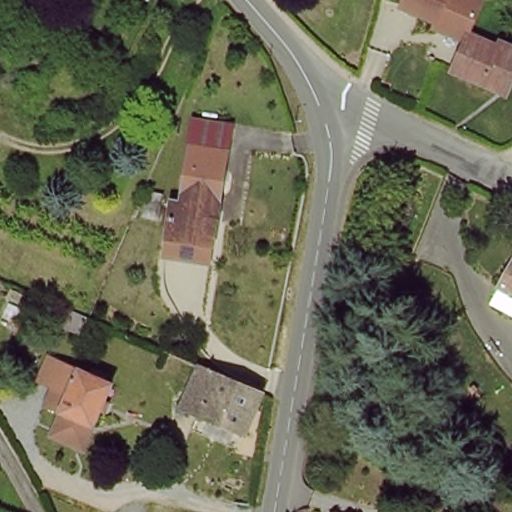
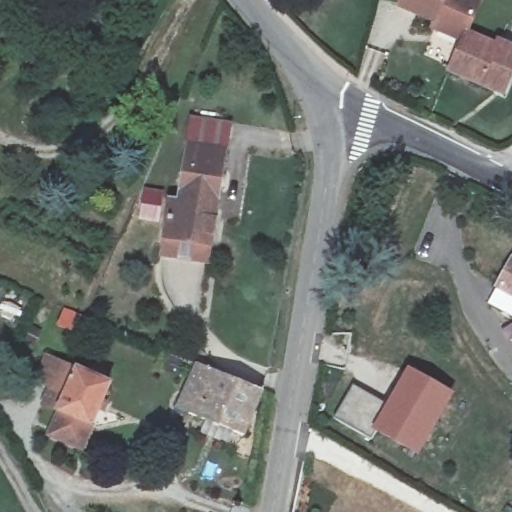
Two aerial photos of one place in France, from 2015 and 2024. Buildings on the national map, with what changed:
unchanged [(430,35),(433,24),(396,12),(401,0),(482,0),(470,32),(464,29),(460,42),(430,35)]
unchanged [(494,46),(498,40),(512,47),(512,69),(503,91),(451,68),(466,33),(494,46)]
unchanged [(206,250),(168,246),(184,128),(220,131),(206,250)]
unchanged [(512,260),(512,295),(498,287),(512,260)]
unchanged [(52,438),(63,414),(60,413),(44,405),(52,387),(37,380),(49,357),(79,372),(109,387),(94,427),(84,451),(52,438)]
unchanged [(261,393),(243,443),(184,414),(197,367),(261,393)]
new [(355,387),(389,407),(411,368),(458,394),(420,458),(377,434),(375,440),(338,419),(355,387)]

